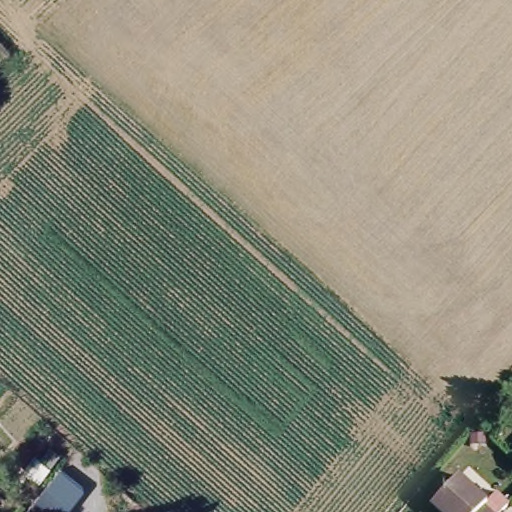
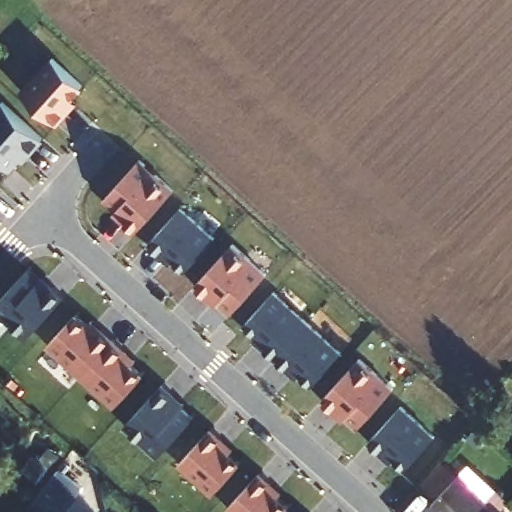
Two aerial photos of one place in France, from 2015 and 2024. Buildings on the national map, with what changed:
new [(20,92),(50,58),(84,88),(73,100),(79,105),(58,126),(20,92)]
new [(1,101),(42,137),(11,171),(0,161),(0,102),(1,101)]
new [(103,201),(141,159),(160,177),(158,180),(165,186),(168,182),(175,190),(135,233),(103,201)]
new [(2,189),(0,190),(0,187),(2,189)]
new [(147,245),(180,207),(215,237),(186,271),(175,262),(171,265),(147,245)]
new [(193,287),(233,242),(268,273),(232,315),(218,303),(215,307),(193,287)]
new [(0,312),(0,299),(30,267),(50,285),(53,282),(67,294),(27,337),(0,312)]
new [(252,340),(257,335),(245,324),(274,292),(342,353),(313,386),(300,375),(295,379),(252,340)]
new [(85,327),(92,320),(138,361),(130,370),(140,379),(115,407),(47,347),(73,317),(85,327)]
new [(320,402),(360,357),(395,387),(358,429),(345,418),(343,421),(320,402)]
new [(125,427),(164,383),(186,402),(181,408),(193,419),(158,457),(125,427)]
new [(400,455),(391,464),(373,448),(387,434),(383,431),(405,407),(436,435),(410,463),(400,455)]
new [(178,465),(211,428),(235,450),(233,452),(242,462),(212,495),(178,465)]
unchanged [(58,456),(47,468),(37,460),(49,447),(58,456)]
new [(420,483),(442,461),(455,473),(433,496),(420,483)]
unchanged [(58,467),(59,468),(82,486),(82,490),(65,512),(24,512),(58,467)]
unchanged [(431,498),(457,470),(485,495),(497,483),(509,495),(505,500),(495,511),(496,512),(445,512),(431,498)]
new [(227,508),(260,472),(283,492),(281,496),(292,506),(286,512),(231,512),(227,508)]

